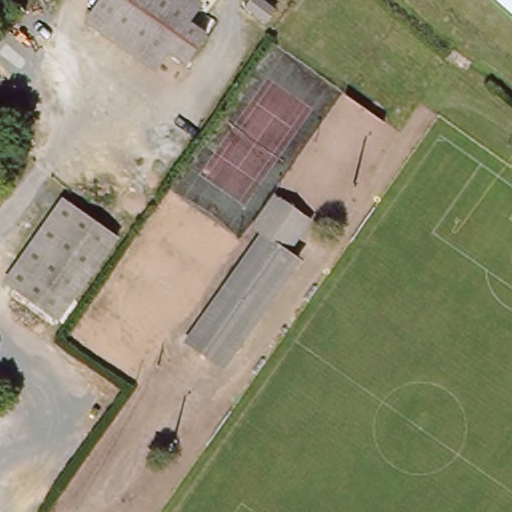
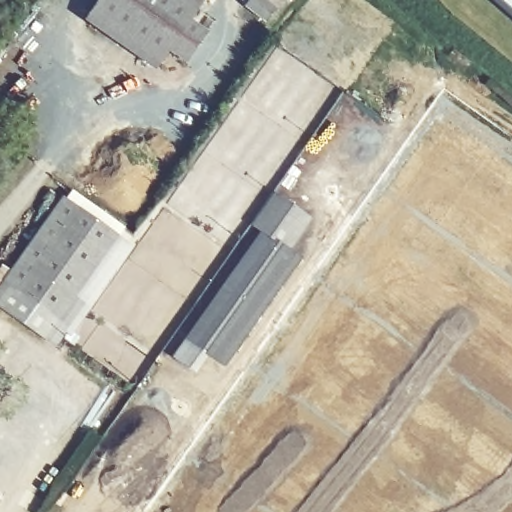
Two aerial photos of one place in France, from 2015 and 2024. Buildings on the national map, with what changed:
unchanged [(184,30),(205,46),(182,74),(164,60),(153,71),(86,24),(105,0),(175,0),(198,16),(184,30)]
unchanged [(494,0),(512,0),(512,16),(494,0)]
unchanged [(284,17),(276,30),(255,16),(262,4),(284,17)]
unchanged [(197,358),(179,345),(254,245),(262,235),(252,226),(275,193),(313,218),(289,256),(280,249),(251,286),(211,340),(197,358)]
unchanged [(58,324),(8,282),(73,205),(123,247),(58,324)]
unchanged [(211,340),(251,286),(280,249),(289,256),(293,260),(225,351),(211,340)]

